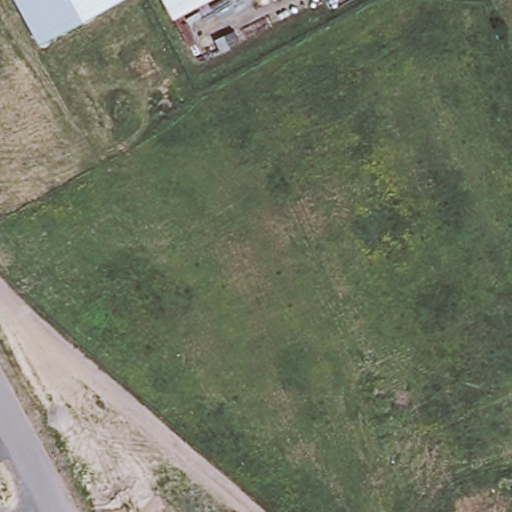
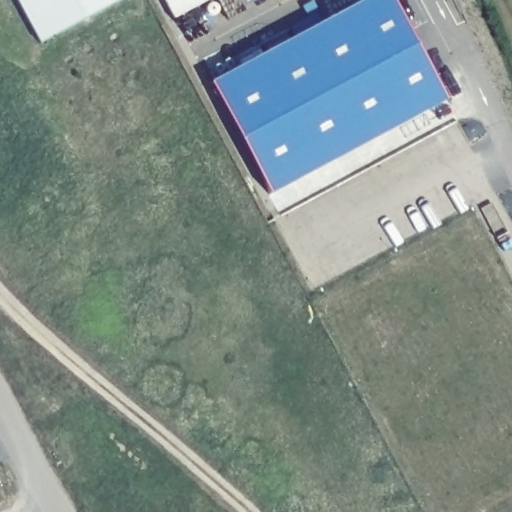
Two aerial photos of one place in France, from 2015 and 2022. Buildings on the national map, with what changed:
unchanged [(36,46),(12,0),(124,0),(36,46)]
unchanged [(178,22),(167,0),(218,0),(178,22)]
new [(213,81),(365,0),(394,0),(446,100),(269,193),(213,81)]

